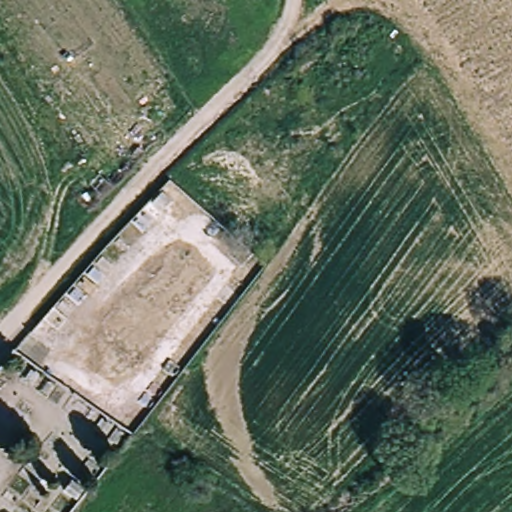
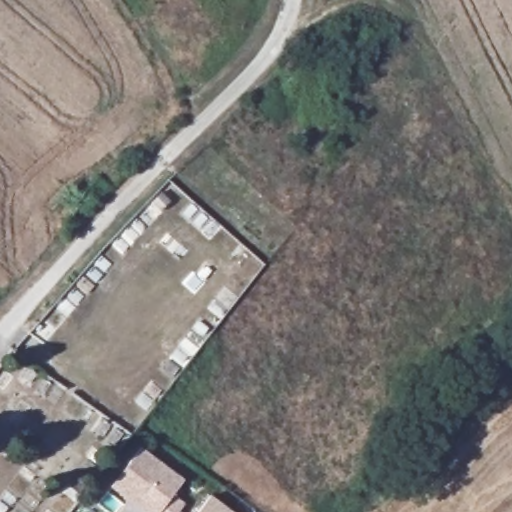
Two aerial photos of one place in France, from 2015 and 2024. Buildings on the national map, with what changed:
new [(141,448),(183,482),(172,496),(184,506),(179,512),(143,512),(111,486),(141,448)]
new [(212,496),(231,512),(198,512),(212,496)]

